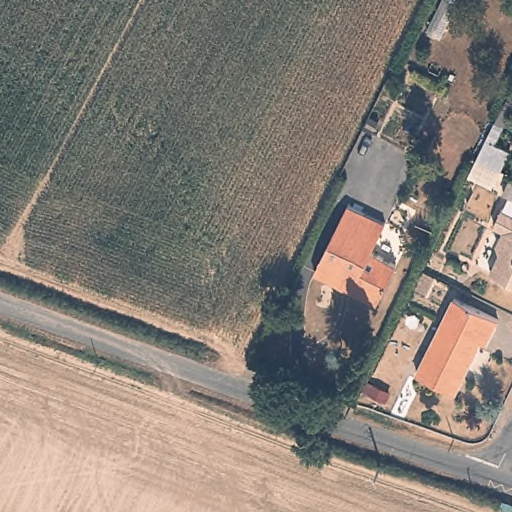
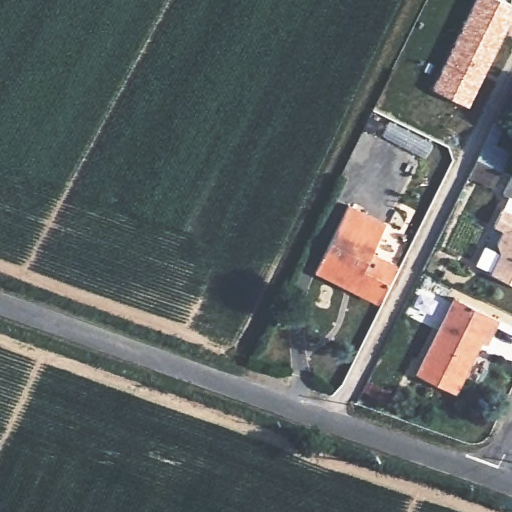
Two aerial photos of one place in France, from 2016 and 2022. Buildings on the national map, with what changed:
new [(503,0),(512,4),(512,15),(469,106),(433,88),(474,0),(503,0)]
new [(492,122),(503,126),(494,144),(508,150),(493,189),(467,177),(492,122)]
unchanged [(512,168),(512,193),(502,189),(511,168),(512,168)]
unchanged [(387,223),(372,253),(394,264),(377,297),(349,284),(347,288),(315,272),(350,204),(387,223)]
unchanged [(512,210),(512,281),(493,272),(503,251),(498,248),(507,229),(497,224),(506,207),(512,210)]
unchanged [(493,319),(499,323),(487,345),(482,342),(455,394),(418,376),(455,300),(493,319)]

